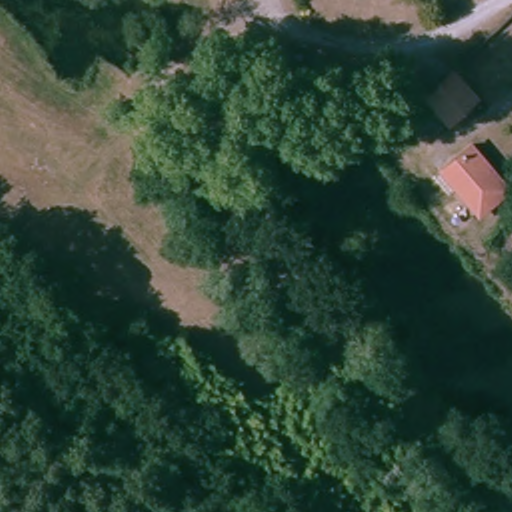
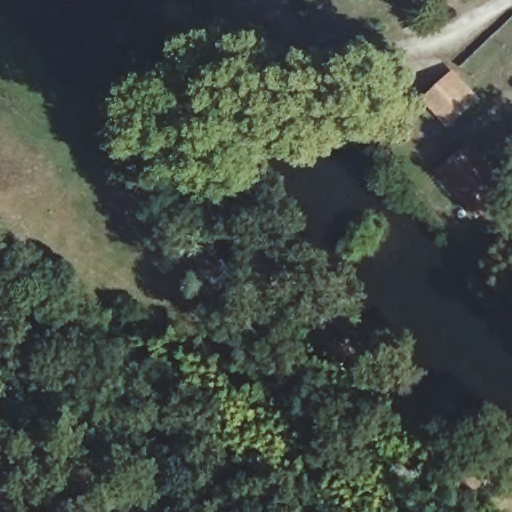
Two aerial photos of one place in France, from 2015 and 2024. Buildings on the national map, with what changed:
unchanged [(479,100),(457,127),(417,90),(439,64),(479,100)]
unchanged [(464,144),(505,178),(476,215),(433,182),(464,144)]

